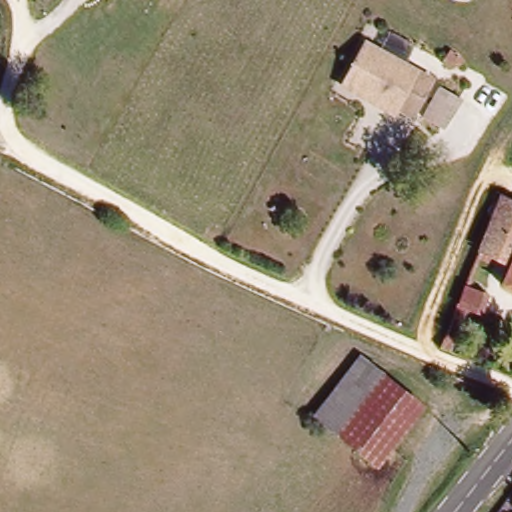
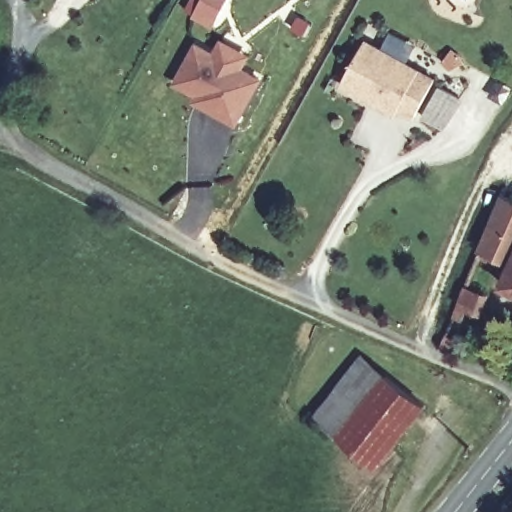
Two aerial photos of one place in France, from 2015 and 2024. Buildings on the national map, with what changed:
new [(247,69),(265,80),(240,126),(195,103),(199,96),(175,83),(197,40),(215,51),(222,39),(253,56),(247,69)]
unchanged [(360,93),(341,83),(364,39),(434,77),(414,114),(397,105),(395,112),(360,93)]
unchanged [(439,86),(457,96),(441,127),(422,117),(439,86)]
unchanged [(495,268),(469,261),(492,198),(512,206),(512,270),(497,263),(495,268)]
unchanged [(512,270),(512,293),(507,290),(512,270)]
unchanged [(489,315),(462,305),(469,288),(495,298),(489,315)]
unchanged [(340,428),(317,412),(362,355),(384,373),(340,428)]
unchanged [(425,405),(381,461),(340,428),(384,373),(425,405)]

